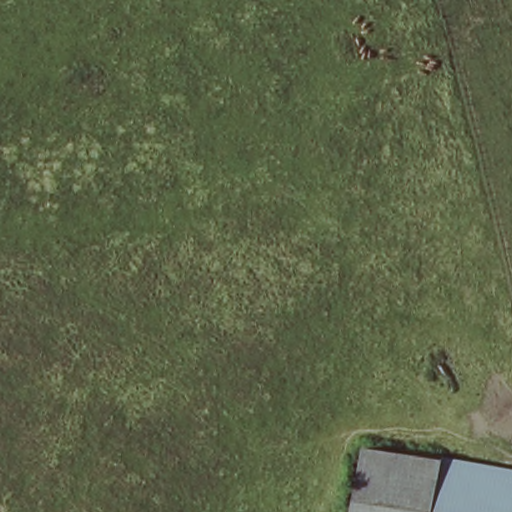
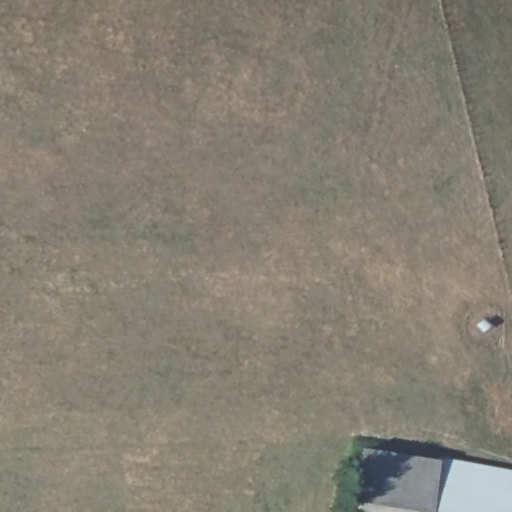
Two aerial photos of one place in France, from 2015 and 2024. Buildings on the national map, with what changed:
unchanged [(440,462),(441,455),(512,466),(512,512),(349,512),(361,448),(440,462)]

